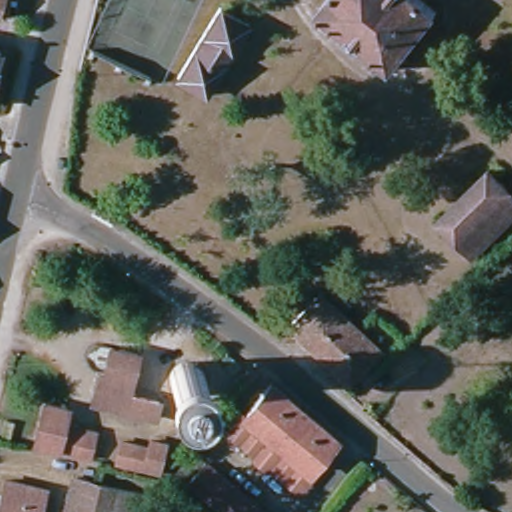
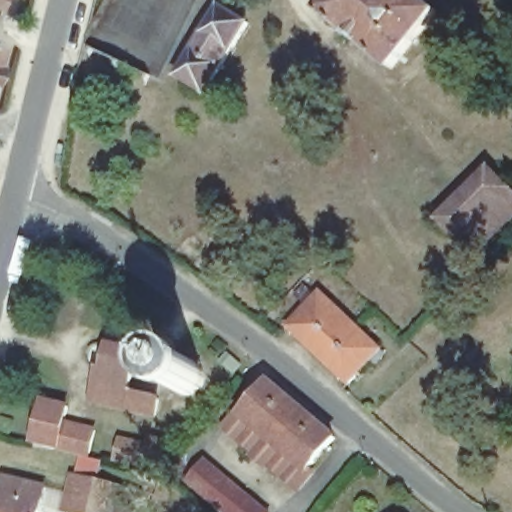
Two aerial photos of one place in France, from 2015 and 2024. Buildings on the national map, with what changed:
unchanged [(394,73),(319,16),(331,0),(419,0),(439,15),(394,73)]
unchanged [(249,26),(209,98),(179,81),(222,10),(249,26)]
unchanged [(512,194),(512,226),(478,262),(442,228),(493,174),(512,194)]
unchanged [(383,351),(352,384),(291,327),(323,294),(383,351)]
unchanged [(99,370),(106,372),(113,346),(138,353),(128,393),(159,401),(154,418),(99,403),(91,401),(99,370)]
unchanged [(239,364),(232,374),(217,364),(224,354),(239,364)]
unchanged [(268,466),(263,471),(249,458),(253,454),(229,433),(224,429),(238,412),(243,416),(269,385),(333,436),(307,469),(314,475),(299,493),(292,487),(268,466)]
unchanged [(45,401),(66,408),(63,424),(93,432),(85,459),(33,443),(45,401)]
unchanged [(161,437),(152,468),(109,456),(115,435),(141,442),(144,431),(161,437)]
unchanged [(273,512),(231,512),(196,483),(214,462),(273,512)]
unchanged [(40,512),(0,512),(0,501),(5,478),(46,488),(40,512)]
unchanged [(99,512),(71,512),(78,480),(105,487),(99,512)]
unchanged [(105,487),(139,495),(149,497),(145,512),(99,512),(105,487)]

